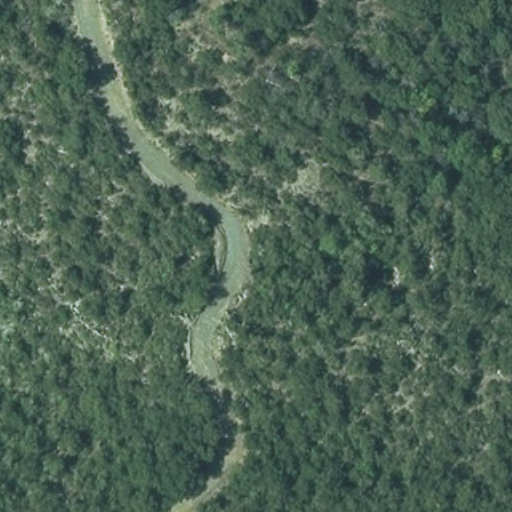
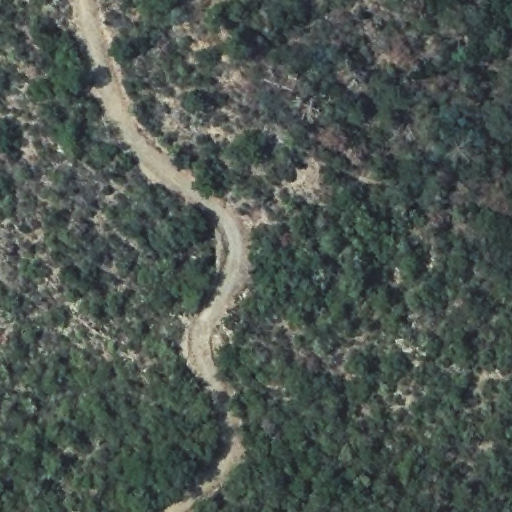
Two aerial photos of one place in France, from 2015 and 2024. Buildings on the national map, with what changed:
unchanged [(484,131),(497,134),(494,149),(480,147),(484,131)]

